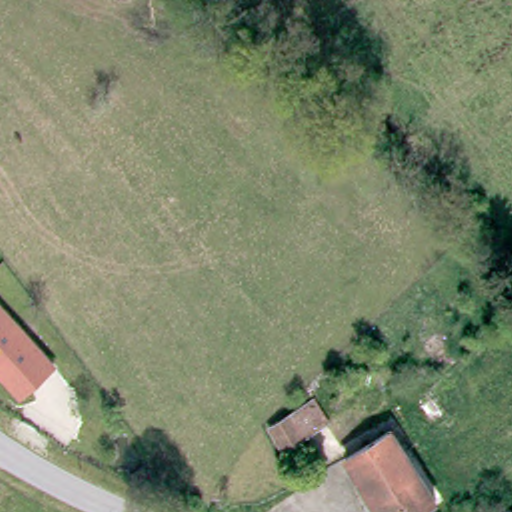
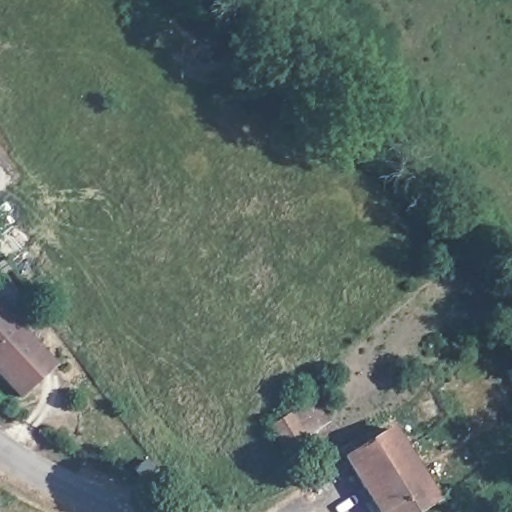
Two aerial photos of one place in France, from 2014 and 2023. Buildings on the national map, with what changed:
unchanged [(20,398),(0,375),(0,299),(56,364),(20,398)]
unchanged [(328,388),(335,396),(322,406),(317,398),(328,388)]
unchanged [(284,451),(268,427),(290,413),(294,419),(313,407),(318,415),(299,427),(305,438),(284,451)]
unchanged [(377,503),(349,458),(395,431),(439,500),(420,512),(373,512),(370,507),(377,503)]

